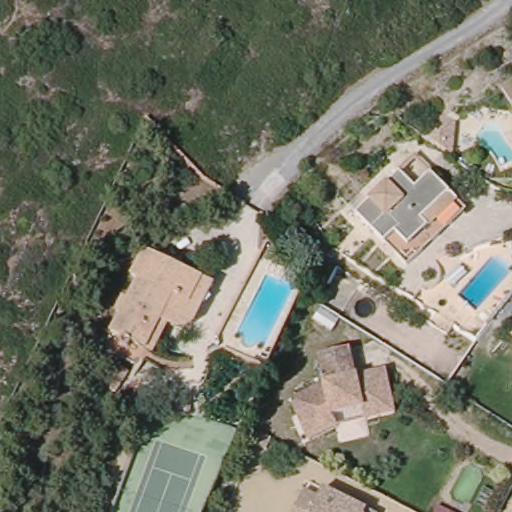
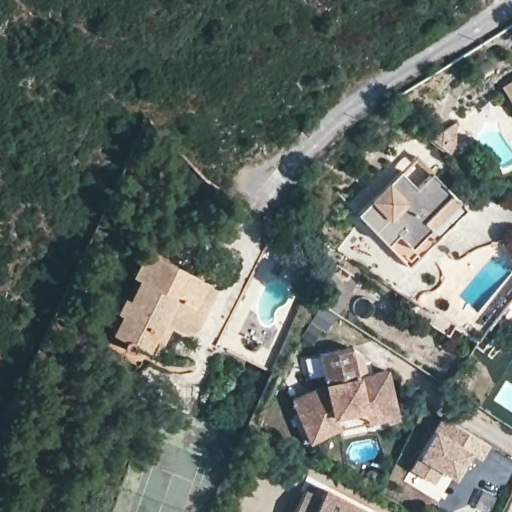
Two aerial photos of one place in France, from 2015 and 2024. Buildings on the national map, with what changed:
unchanged [(496,88),(512,78),(512,112),(511,111),(496,88)]
unchanged [(443,150),(423,136),(450,118),(450,155),(443,150)]
unchanged [(407,267),(355,213),(399,170),(415,186),(430,171),(467,209),(407,267)]
unchanged [(185,303),(180,313),(178,315),(161,308),(141,348),(126,341),(126,342),(126,343),(125,344),(125,345),(124,345),(123,346),(122,346),(121,346),(120,346),(118,346),(118,345),(117,344),(116,344),(116,342),(116,341),(116,339),(117,338),(119,337),(107,331),(116,312),(111,310),(118,297),(123,300),(134,277),(127,273),(140,250),(197,279),(185,303)]
unchanged [(208,284),(190,321),(185,325),(178,328),(175,329),(163,323),(148,352),(141,348),(161,308),(176,316),(178,315),(180,313),(185,303),(197,279),(208,284)]
new [(320,304),(335,313),(325,330),(319,326),(310,340),(301,335),(310,321),(320,304)]
unchanged [(308,432),(303,420),(293,393),(325,381),(318,349),(350,342),(356,371),(385,365),(391,397),(395,410),(367,415),(365,402),(330,410),(335,421),(308,432)]
unchanged [(110,391),(98,383),(111,362),(124,371),(110,391)]
new [(446,418),(492,448),(482,462),(471,454),(455,479),(443,470),(434,484),(412,471),(446,418)]
unchanged [(298,484),(313,492),(318,482),(361,505),(373,511),(373,512),(284,512),(298,484)]
unchanged [(436,506),(447,512),(434,512),(436,506)]

